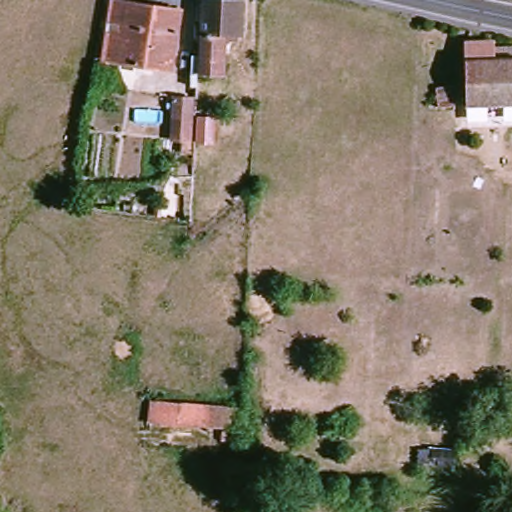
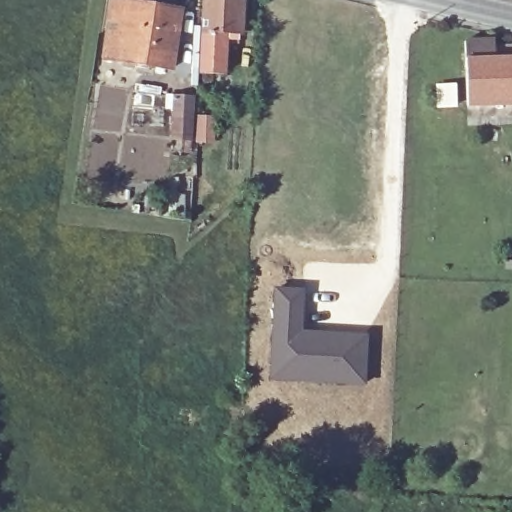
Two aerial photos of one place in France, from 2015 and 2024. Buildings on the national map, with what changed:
unchanged [(114,0),(124,0),(181,9),(172,69),(103,59),(114,0)]
unchanged [(226,37),(224,79),(200,77),(204,2),(244,5),(242,38),(226,37)]
unchanged [(468,105),(466,40),(496,39),(496,45),(512,45),(512,103),(468,105)]
unchanged [(441,97),(442,84),(455,84),(456,105),(431,106),(431,98),(441,97)]
unchanged [(172,135),(173,97),(192,98),(191,135),(172,135)]
new [(273,287),(304,288),(303,330),(368,333),(365,386),(268,381),(273,287)]
unchanged [(178,406),(227,408),(225,430),(149,424),(151,403),(178,406)]

